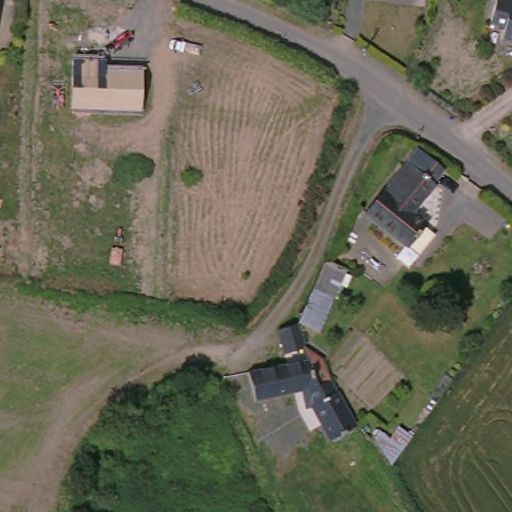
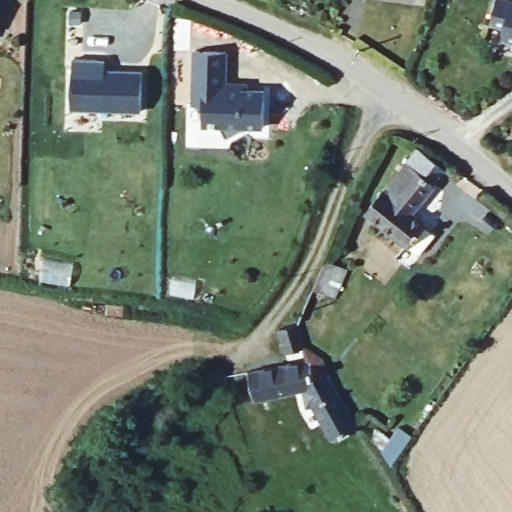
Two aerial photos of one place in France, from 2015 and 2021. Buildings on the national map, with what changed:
unchanged [(420,1),(406,0),(420,0),(420,1)]
new [(216,50),(220,91),(254,88),(260,128),(240,128),(240,130),(222,140),(215,128),(198,127),(198,107),(188,107),(184,50),(216,50)]
unchanged [(142,110),(71,109),(72,57),(105,57),(105,65),(144,66),(142,110)]
unchanged [(417,155),(447,179),(416,220),(432,232),(412,258),(367,222),(417,155)]
unchanged [(341,283),(330,311),(311,303),(322,276),(341,283)]
unchanged [(297,340),(303,338),(311,368),(291,373),(283,344),(297,340)]
unchanged [(305,390),(257,400),(252,384),(308,373),(311,377),(314,388),(305,390)]
unchanged [(334,451),(324,419),(318,420),(315,405),(324,403),(339,400),(341,405),(354,447),(334,451)]

